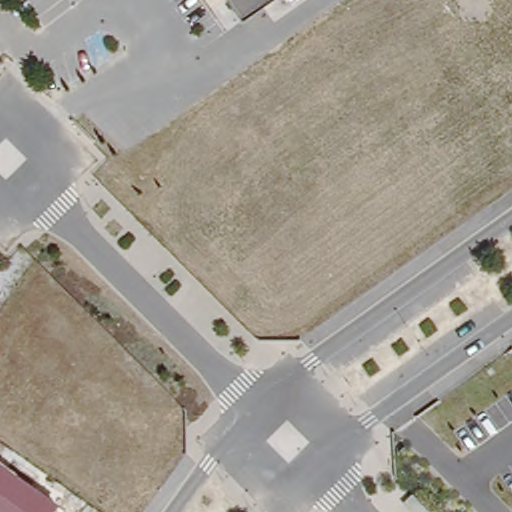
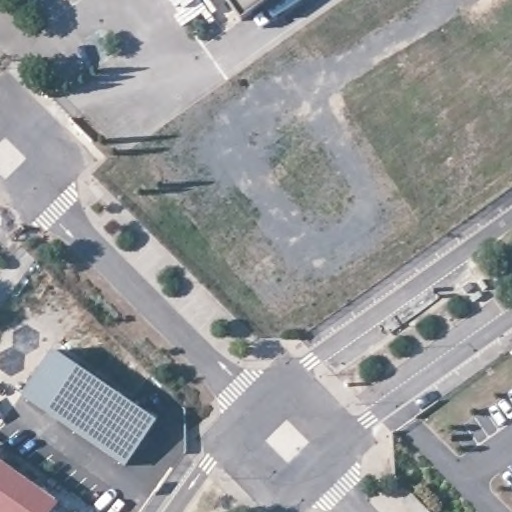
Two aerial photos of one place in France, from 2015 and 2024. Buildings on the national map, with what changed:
unchanged [(230,0),(265,0),(242,16),(241,14),(230,0)]
new [(59,354),(163,427),(131,472),(27,398),(59,354)]
unchanged [(53,509),(51,512),(0,512),(0,462),(59,501),(53,509)]

